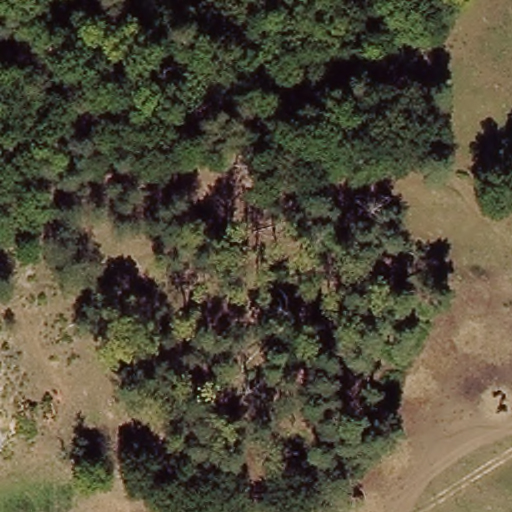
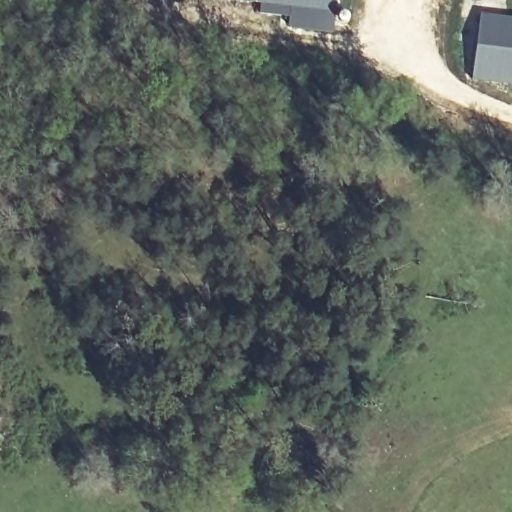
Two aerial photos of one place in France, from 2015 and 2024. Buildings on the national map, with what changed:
new [(291,25),(293,5),(247,0),(338,0),(335,31),(291,25)]
new [(473,79),(482,15),(512,19),(512,83),(473,79)]

